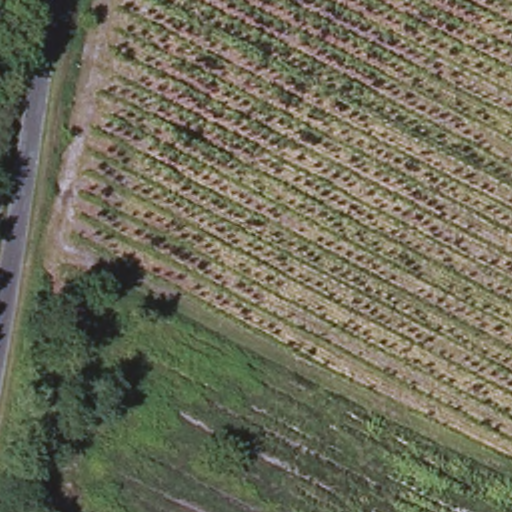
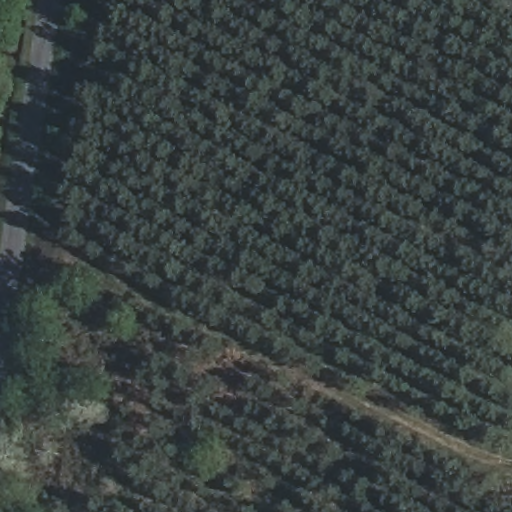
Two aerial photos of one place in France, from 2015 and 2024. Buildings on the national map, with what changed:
[]

